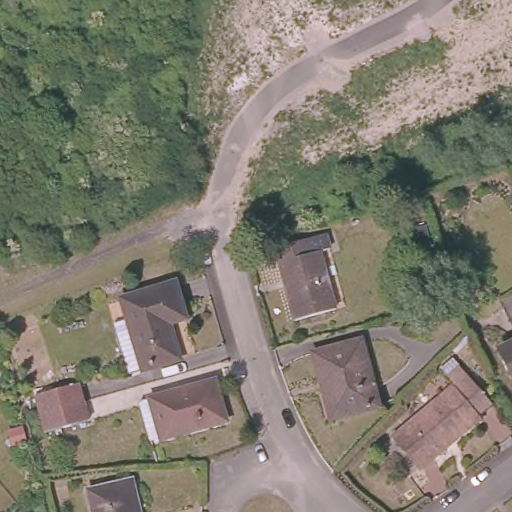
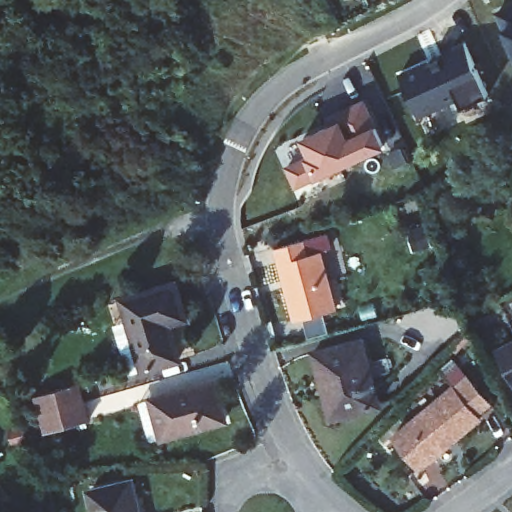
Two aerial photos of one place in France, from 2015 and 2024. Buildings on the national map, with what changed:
new [(512,47),(496,11),(512,4),(512,47)]
new [(400,73),(465,43),(479,73),(489,94),(464,106),(459,98),(420,116),(400,73)]
new [(382,145),(294,185),(285,166),(309,155),(301,138),(338,121),(334,113),(361,100),(382,145)]
unchanged [(334,309),(294,320),(273,248),(324,234),(328,249),(319,252),(334,309)]
unchanged [(180,284),(189,318),(173,322),(183,358),(131,373),(121,337),(118,322),(132,319),(126,299),(180,284)]
unchanged [(318,383),(323,381),(316,352),(360,340),(378,404),(336,416),(328,419),(318,383)]
unchanged [(476,408),(479,412),(419,463),(392,430),(451,381),(439,366),(452,354),(489,398),(476,408)]
unchanged [(214,380),(226,420),(151,440),(140,400),(214,380)]
unchanged [(44,431),(39,414),(34,395),(76,383),(81,402),(86,419),(44,431)]
unchanged [(88,495),(129,485),(136,512),(92,512),(88,495)]

